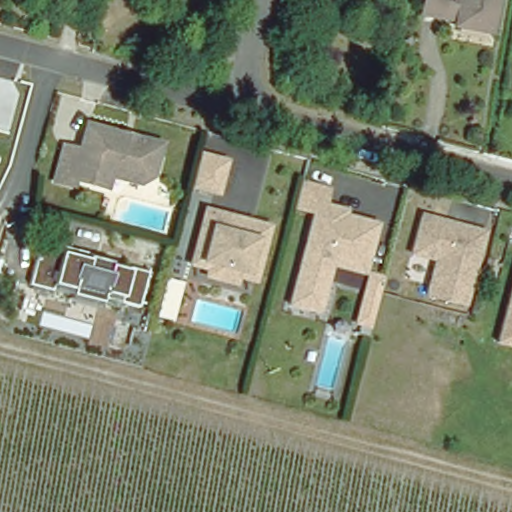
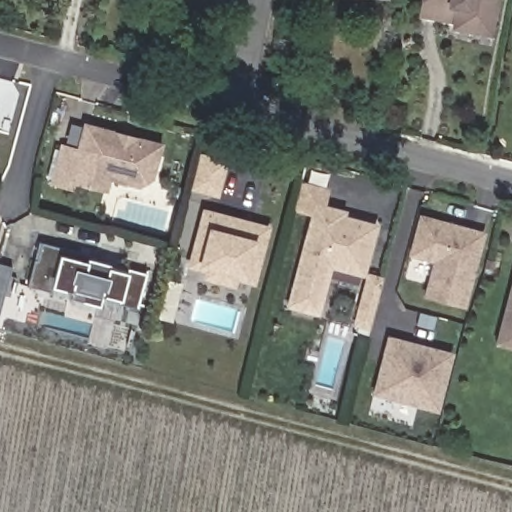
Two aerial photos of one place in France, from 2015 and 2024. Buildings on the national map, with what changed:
unchanged [(425,0),(496,0),(490,31),(456,25),(457,21),(422,15),(423,7),(425,0)]
unchanged [(151,176),(139,183),(109,175),(106,187),(73,179),(71,185),(54,181),(64,145),(81,150),(87,125),(120,134),(132,136),(160,144),(151,176)]
unchanged [(226,161),(218,192),(192,185),(199,159),(200,155),(226,161)]
unchanged [(364,278),(331,270),(318,317),(289,309),(314,215),(293,212),(300,179),(331,186),(325,210),(337,213),(346,215),(345,220),(377,229),(364,278)]
unchanged [(232,276),(230,283),(202,275),(204,268),(186,264),(188,259),(201,210),(231,218),(242,221),(263,226),(250,275),(250,280),(232,276)]
unchanged [(466,307),(426,296),(435,262),(409,255),(420,213),(487,231),(466,307)]
unchanged [(137,307),(101,299),(100,304),(32,285),(42,243),(147,271),(137,307)]
unchanged [(371,330),(355,328),(370,272),(384,275),(371,330)]
new [(165,280),(181,283),(171,320),(155,316),(165,280)]
unchanged [(512,284),(512,349),(496,345),(512,284)]
new [(387,336),(450,352),(435,408),(372,391),(387,336)]

